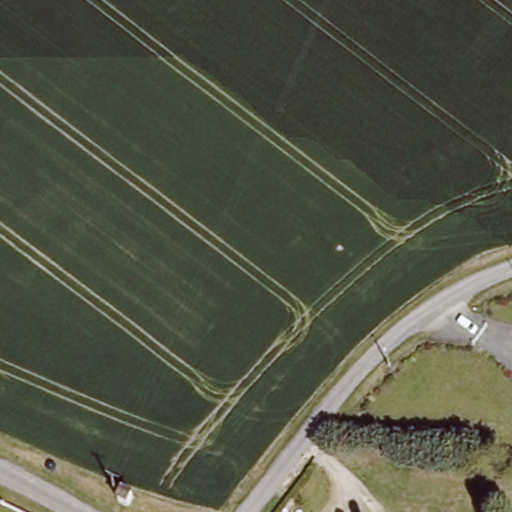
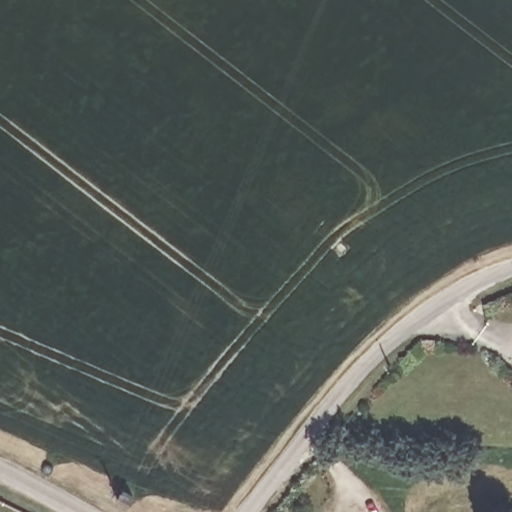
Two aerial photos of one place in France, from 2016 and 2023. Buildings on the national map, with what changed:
[]

